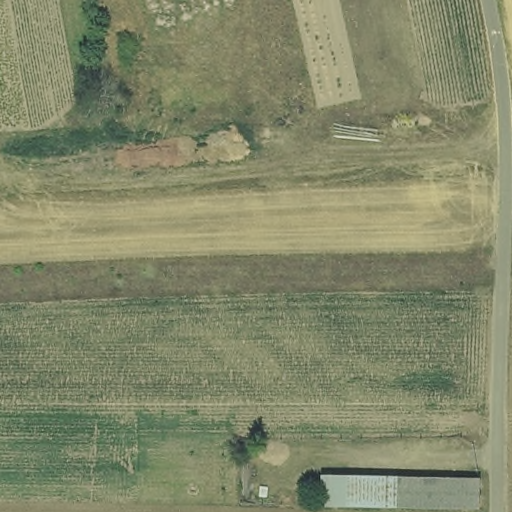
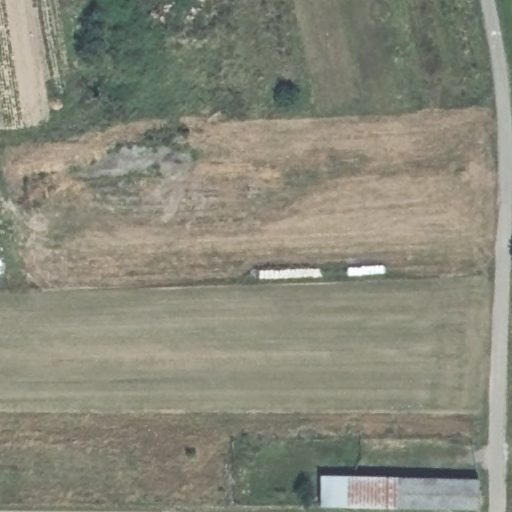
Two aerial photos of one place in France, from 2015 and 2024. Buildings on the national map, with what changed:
unchanged [(479,512),(426,512),(322,510),(321,477),(480,482),(479,512)]

